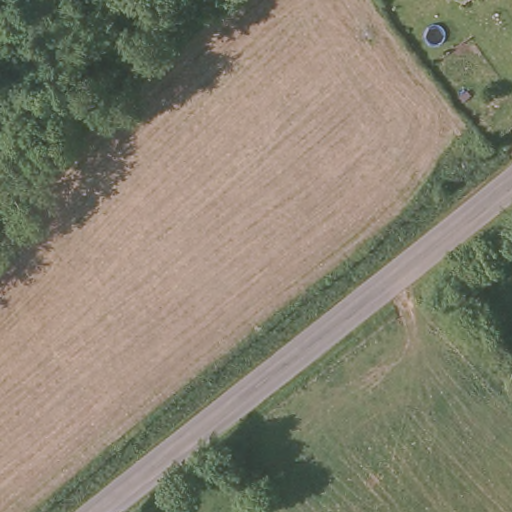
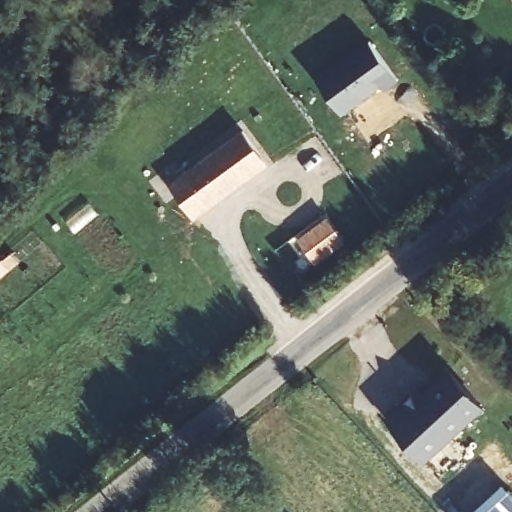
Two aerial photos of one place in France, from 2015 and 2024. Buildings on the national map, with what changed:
new [(400,78),(385,89),(382,83),(343,112),(318,76),(370,38),(400,78)]
new [(195,218),(168,183),(243,128),(270,163),(195,218)]
new [(328,215),(347,240),(317,262),(299,236),(328,215)]
new [(485,406),(426,462),(387,418),(447,365),(485,406)]
new [(472,512),(505,481),(512,490),(512,512),(472,512)]

